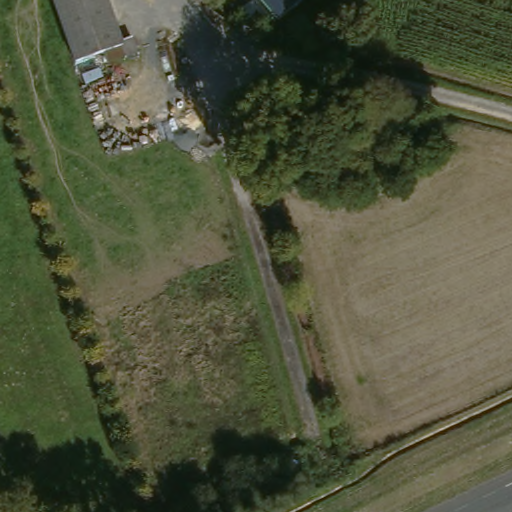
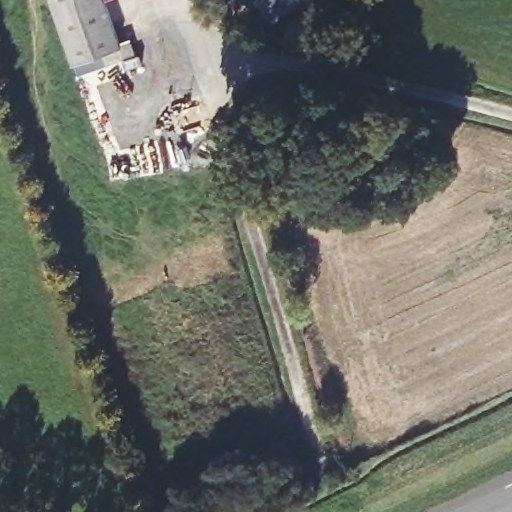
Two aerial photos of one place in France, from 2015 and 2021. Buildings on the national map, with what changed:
unchanged [(101,47),(97,38),(69,48),(52,0),(105,0),(120,41),(101,47)]

